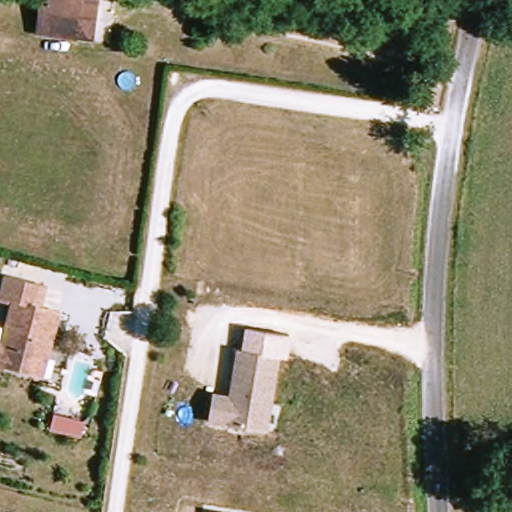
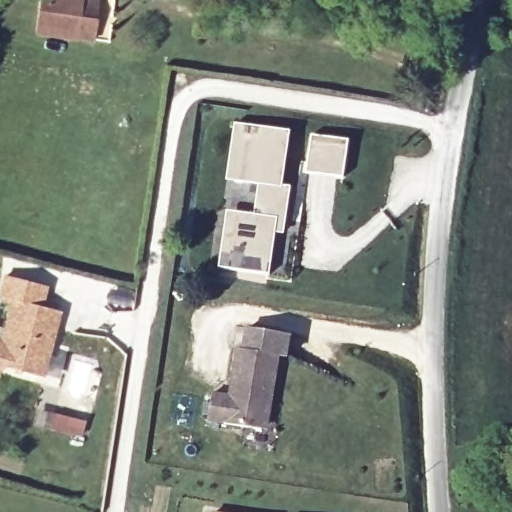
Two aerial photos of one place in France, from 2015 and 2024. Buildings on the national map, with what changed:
unchanged [(90,27),(46,23),(48,2),(86,6),(86,0),(101,0),(101,8),(102,17),(101,27),(90,27)]
new [(260,215),(264,185),(242,182),(232,180),(240,124),(250,125),(295,132),(288,186),(296,187),(292,221),(290,221),(289,233),(282,232),(276,274),(235,269),(225,267),(233,211),(243,213),(260,215)]
new [(316,136),(354,141),(348,178),(311,172),(316,136)]
unchanged [(0,347),(11,350),(21,306),(9,303),(14,282),(54,292),(49,312),(66,316),(61,333),(50,382),(46,381),(6,371),(4,379),(0,378),(0,347)]
unchanged [(263,428),(262,433),(208,425),(209,416),(212,397),(229,400),(237,353),(278,359),(271,406),(266,406),(263,428)]

